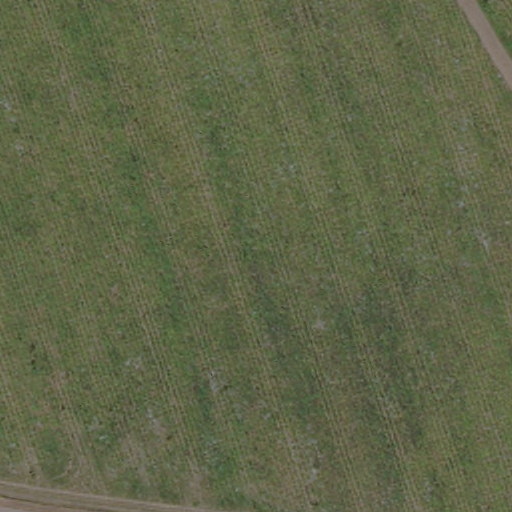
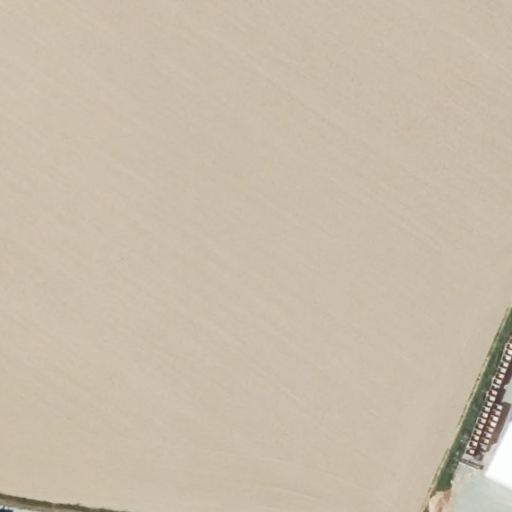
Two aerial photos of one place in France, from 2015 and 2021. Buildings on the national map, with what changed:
new [(512,425),(512,487),(488,476),(512,425)]

